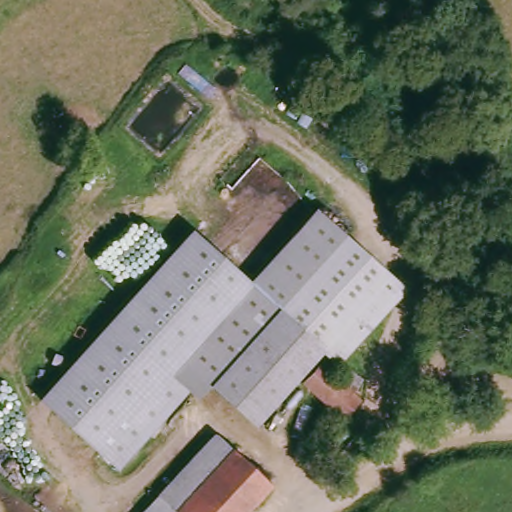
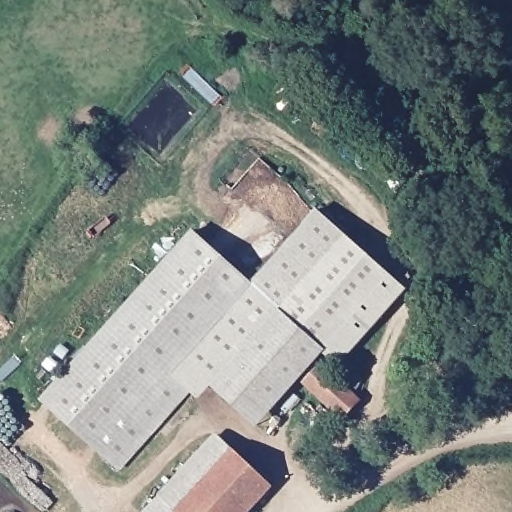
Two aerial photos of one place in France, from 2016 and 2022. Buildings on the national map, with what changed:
unchanged [(173,373),(246,292),(243,289),(248,284),(318,213),(393,281),(320,358),(274,316),(214,384),(201,400),(190,390),(173,373)]
unchanged [(243,289),(246,292),(173,373),(190,390),(118,469),(43,400),(42,398),(193,233),(248,284),(243,289)]
unchanged [(259,425),(214,384),(274,316),(320,358),(259,425)]
unchanged [(359,401),(344,416),(308,384),(323,367),(359,401)]
unchanged [(169,490),(223,432),(275,479),(245,512),(194,512),(169,490)]
unchanged [(169,490),(194,512),(149,512),(169,490)]

